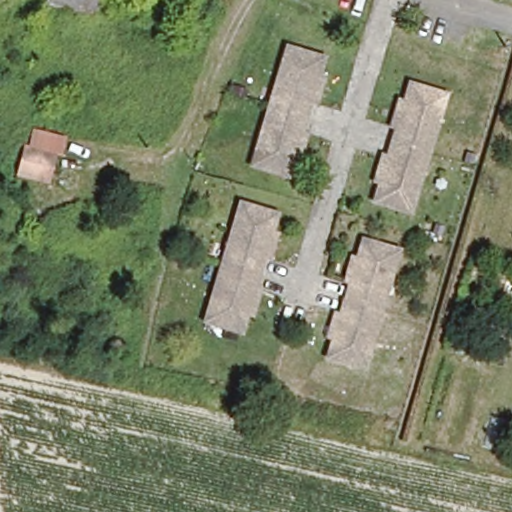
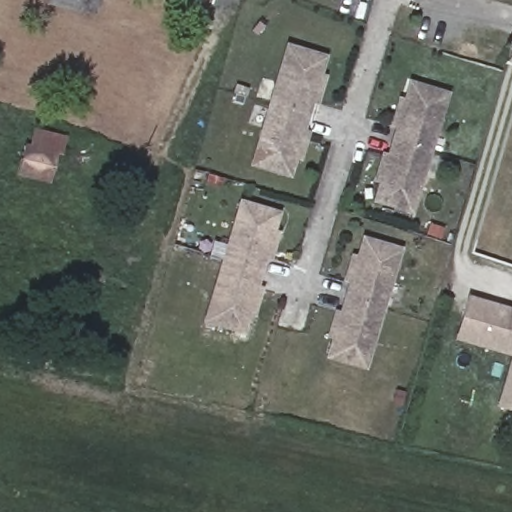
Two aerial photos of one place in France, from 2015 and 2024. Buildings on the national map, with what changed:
unchanged [(51,7),(53,0),(90,0),(85,17),(51,7)]
unchanged [(321,61),(289,175),(254,165),(287,52),(321,61)]
unchanged [(445,100),(413,215),(376,205),(409,89),(445,100)]
unchanged [(62,159),(57,158),(50,187),(17,179),(26,150),(30,151),(34,135),(66,144),(62,159)]
unchanged [(277,215),(242,336),(208,326),(243,205),(277,215)]
unchanged [(368,370),(330,360),(362,241),(400,252),(368,370)]
new [(512,309),(512,353),(479,344),(459,337),(468,296),(512,309)]
new [(498,405),(512,361),(512,409),(498,405)]

